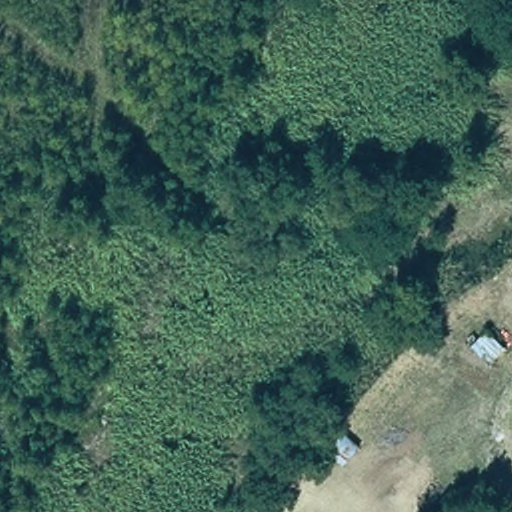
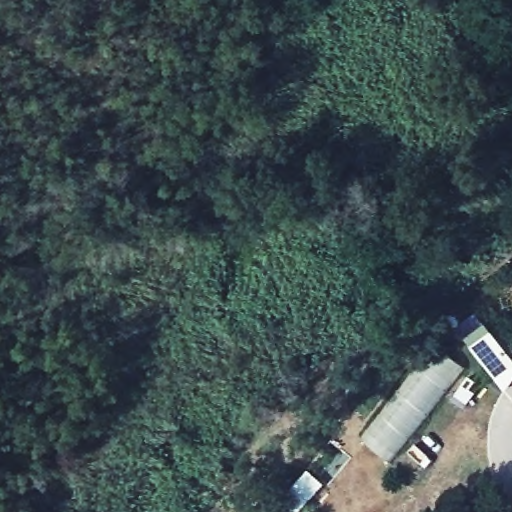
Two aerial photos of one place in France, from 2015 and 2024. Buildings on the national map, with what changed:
unchanged [(505,352),(490,368),(470,350),(485,333),(505,352)]
new [(362,436),(425,357),(433,364),(445,350),(453,357),(448,363),(457,371),(396,448),(392,445),(384,456),(378,449),(372,451),(370,444),(362,436)]
unchanged [(367,452),(347,473),(322,450),(341,428),(367,452)]

